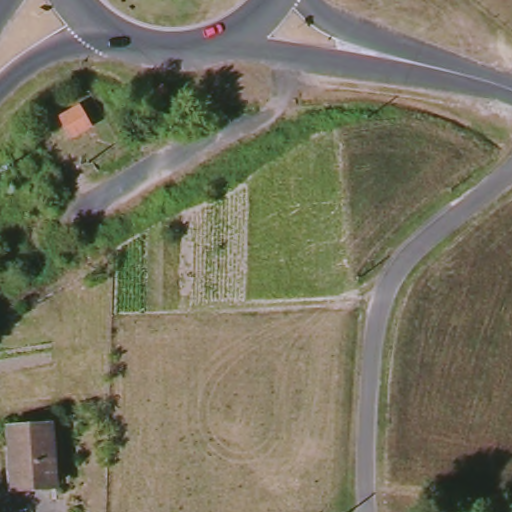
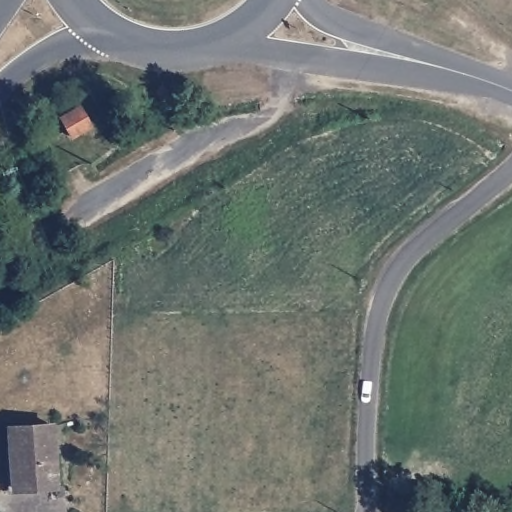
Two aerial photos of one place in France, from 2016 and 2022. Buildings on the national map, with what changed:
unchanged [(80,106),(92,126),(73,138),(61,117),(80,106)]
unchanged [(52,423),(56,483),(14,487),(9,427),(52,423)]

